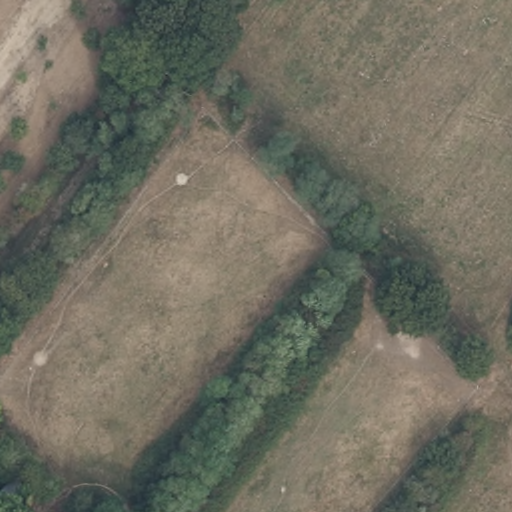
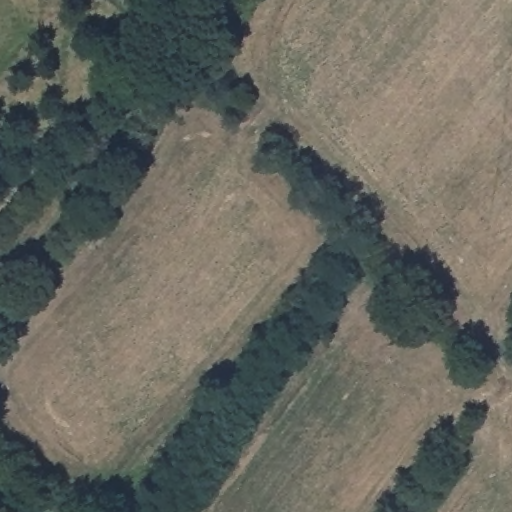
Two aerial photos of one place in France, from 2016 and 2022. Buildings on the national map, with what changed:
[]

